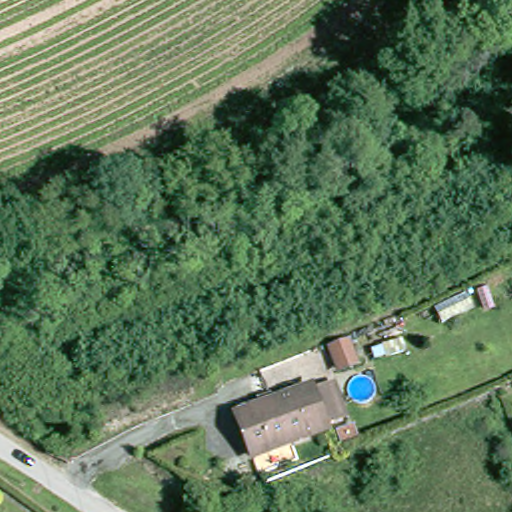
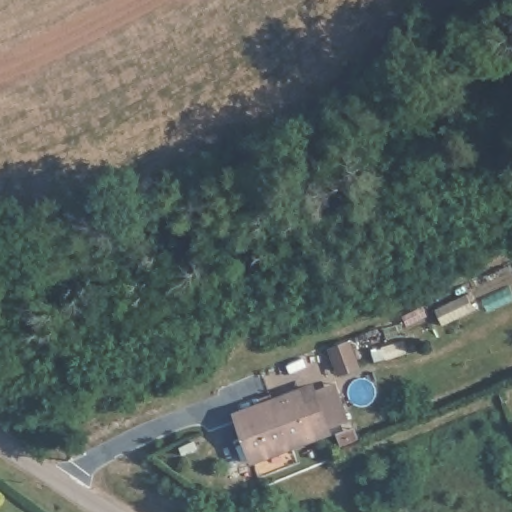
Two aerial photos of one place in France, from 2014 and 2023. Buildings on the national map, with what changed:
unchanged [(254,457),(253,454),(238,413),(264,404),(262,398),(273,394),(275,400),(313,387),(314,389),(334,383),(347,418),(348,421),(328,429),(327,432),(254,457)]

